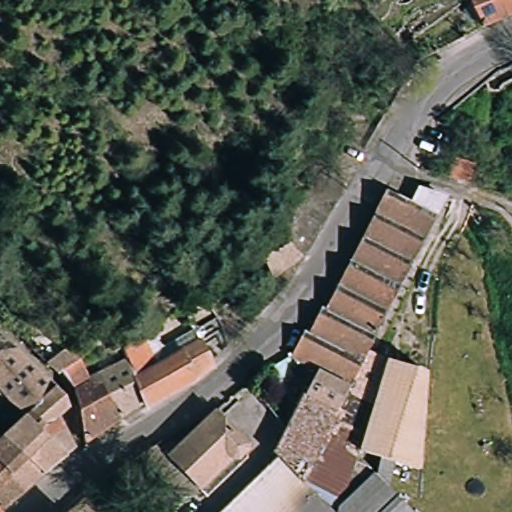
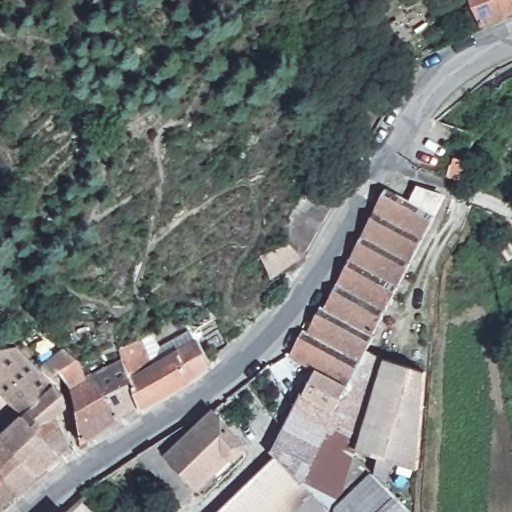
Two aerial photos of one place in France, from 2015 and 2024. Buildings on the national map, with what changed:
unchanged [(473,0),(512,0),(512,18),(483,32),(473,0)]
unchanged [(405,45),(414,54),(365,140),(340,122),(349,107),(405,45)]
unchanged [(442,165),(455,171),(464,160),(472,162),(467,176),(467,187),(465,190),(462,190),(460,189),(450,185),(432,180),(442,165)]
unchanged [(310,237),(267,276),(252,259),(273,237),(271,232),(310,172),(339,187),(310,237)]
unchanged [(388,487),(414,512),(221,512),(274,458),(318,369),(290,356),(389,186),(413,199),(417,187),(445,190),(371,348),(432,374),(421,471),(396,464),(388,487)]
unchanged [(162,345),(191,328),(207,363),(208,369),(175,391),(155,360),(162,356),(165,355),(162,345)]
unchanged [(175,391),(153,404),(149,399),(121,360),(114,350),(131,339),(138,348),(144,344),(155,360),(175,391)]
unchanged [(0,393),(0,352),(16,348),(56,386),(58,387),(25,418),(0,393)]
unchanged [(121,360),(149,399),(125,416),(99,376),(121,360)]
unchanged [(125,416),(83,446),(80,436),(73,437),(69,419),(76,414),(72,393),(62,382),(64,381),(67,379),(79,371),(88,384),(99,376),(125,416)]
unchanged [(58,387),(63,393),(66,400),(66,409),(56,418),(73,454),(41,480),(2,440),(25,418),(58,387)]
unchanged [(25,418),(2,440),(0,437),(0,393),(25,418)]
unchanged [(171,464),(219,420),(241,436),(247,433),(259,442),(201,493),(190,502),(144,458),(156,450),(171,464)]
unchanged [(41,480),(0,511),(0,437),(2,440),(41,480)]
unchanged [(72,512),(68,512),(70,510),(72,512)]

